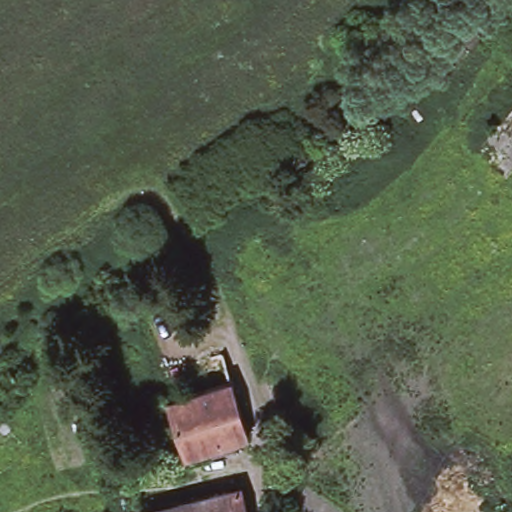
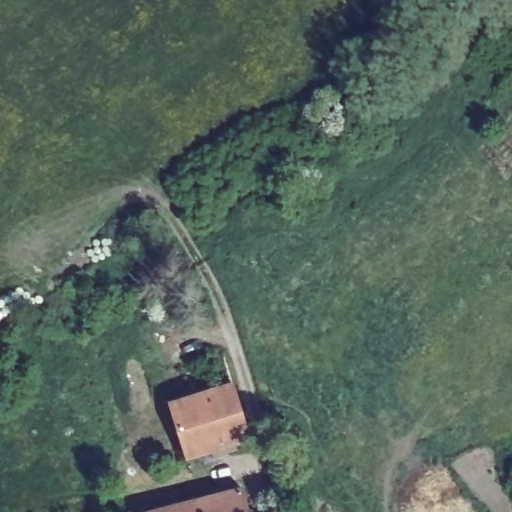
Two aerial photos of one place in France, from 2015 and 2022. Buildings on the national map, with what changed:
unchanged [(187,457),(170,402),(202,392),(193,364),(222,355),(230,383),(247,439),(187,457)]
unchanged [(237,484),(245,512),(141,512),(140,509),(237,484)]

